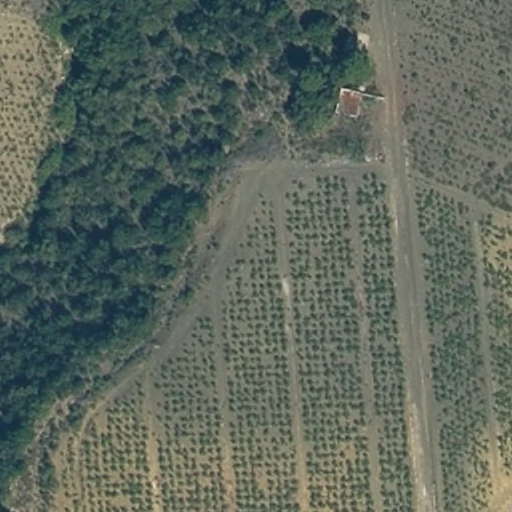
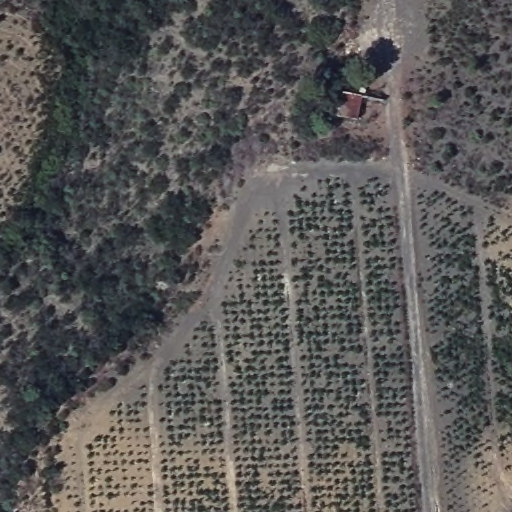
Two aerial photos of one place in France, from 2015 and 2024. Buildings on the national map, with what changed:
unchanged [(367,89),(362,113),(341,109),(345,83),(367,89)]

